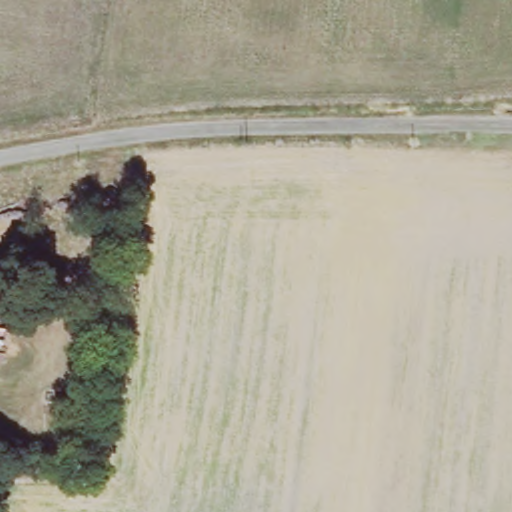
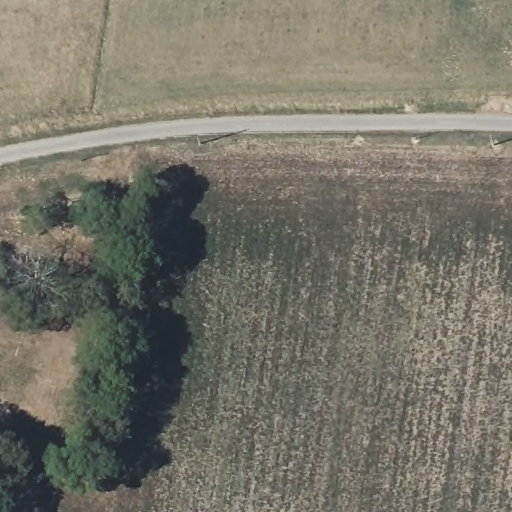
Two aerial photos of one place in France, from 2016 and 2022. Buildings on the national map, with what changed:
[]

